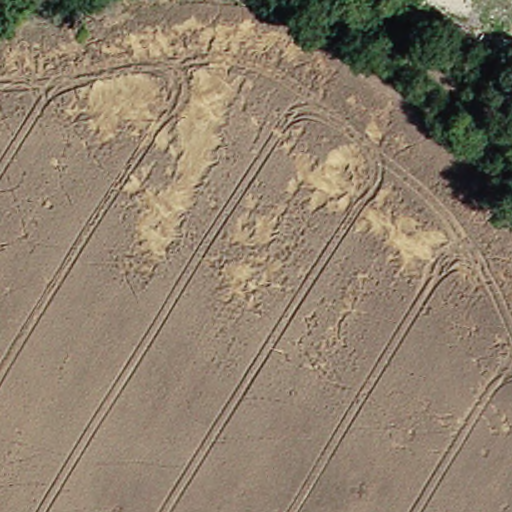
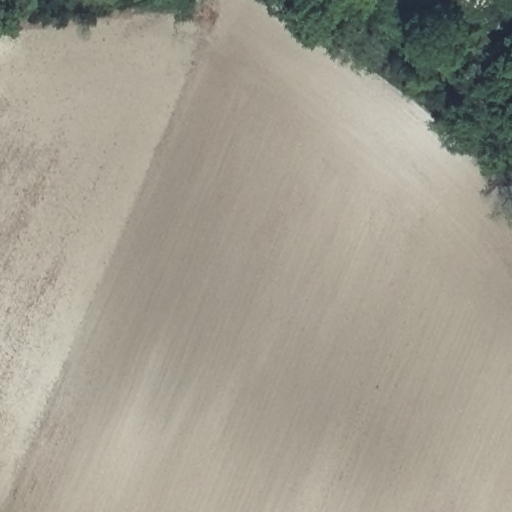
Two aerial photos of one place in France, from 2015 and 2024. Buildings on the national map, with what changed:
[]

